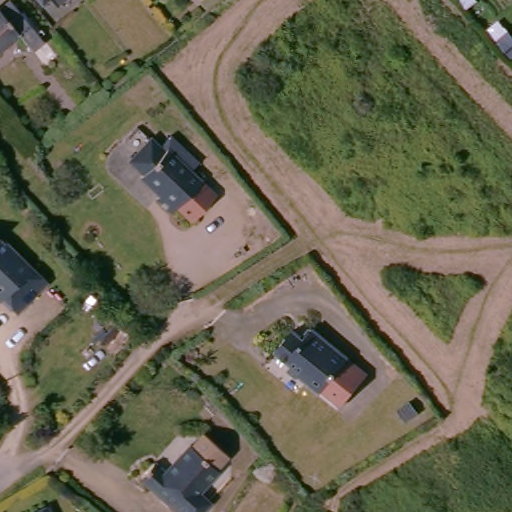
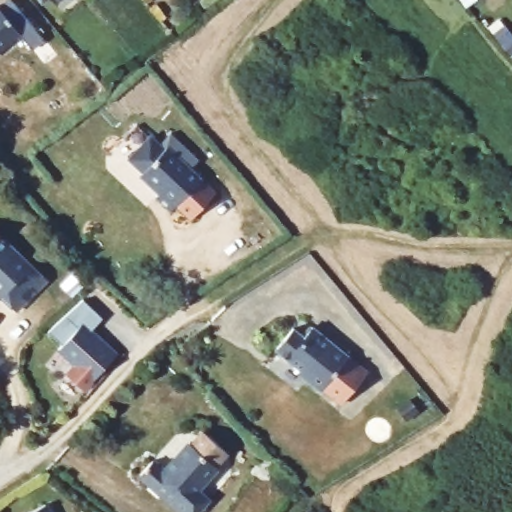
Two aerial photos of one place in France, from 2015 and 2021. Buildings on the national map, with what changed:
unchanged [(45,14),(39,7),(30,14),(19,0),(62,0),(45,14)]
unchanged [(10,5),(43,45),(32,54),(19,38),(0,53),(0,13),(10,5)]
unchanged [(163,155),(211,201),(187,226),(172,213),(166,219),(151,205),(156,200),(137,182),(139,179),(126,166),(146,144),(160,158),(163,155)]
unchanged [(44,289),(14,317),(0,303),(0,248),(3,245),(44,289)]
new [(85,302),(104,320),(93,333),(119,357),(86,393),(69,377),(77,367),(61,351),(64,347),(50,334),(85,302)]
unchanged [(316,338),(353,367),(353,368),(372,383),(348,414),(328,399),(326,402),(311,390),(314,387),(281,361),(297,340),(308,349),(316,338)]
new [(2,388),(0,389),(0,386),(2,388)]
unchanged [(230,462),(218,475),(220,477),(199,499),(210,509),(208,512),(172,512),(141,482),(154,468),(166,478),(192,451),(194,452),(206,439),(230,462)]

